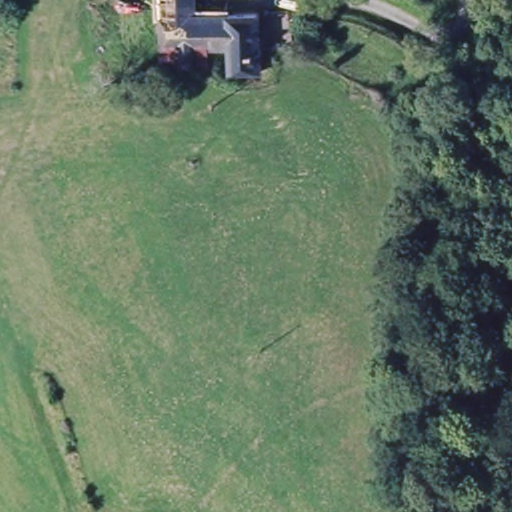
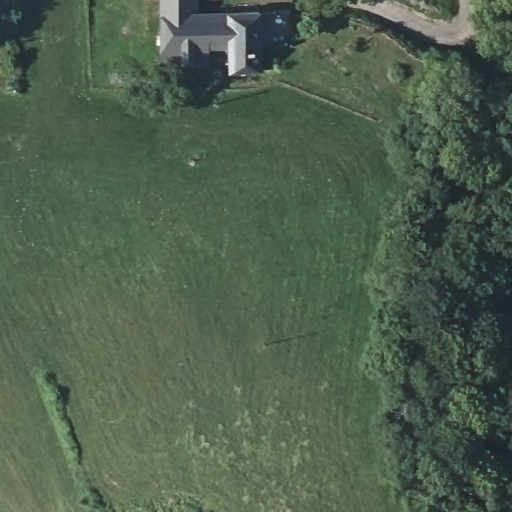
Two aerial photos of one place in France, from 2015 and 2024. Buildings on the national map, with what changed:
unchanged [(270,75),(235,74),(234,56),(207,56),(207,68),(162,67),(160,0),(197,0),(198,16),(265,18),(268,52),(270,75)]

